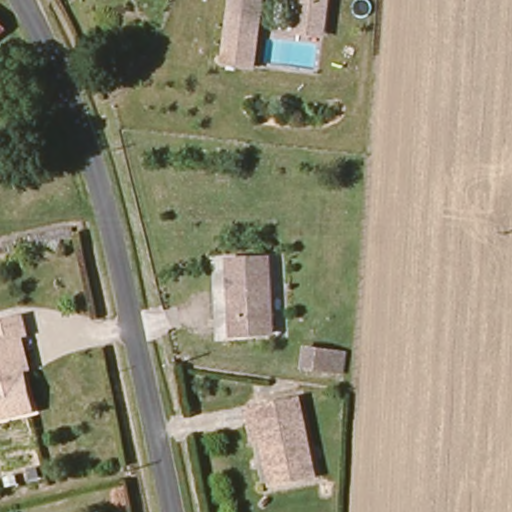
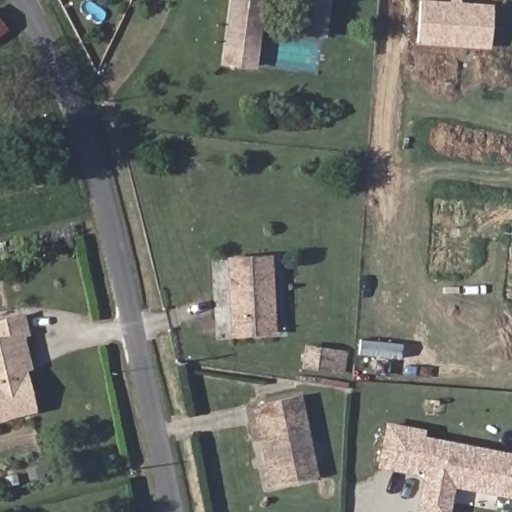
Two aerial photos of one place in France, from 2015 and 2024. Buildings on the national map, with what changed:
unchanged [(254,66),(224,64),(231,0),(261,0),(254,66)]
unchanged [(297,32),(300,2),(300,0),(327,0),(326,5),(322,35),(297,32)]
new [(416,43),(418,0),(433,0),(493,4),(490,48),(416,43)]
unchanged [(0,12),(1,11),(11,34),(0,42),(0,12)]
unchanged [(270,262),(273,338),(232,340),(229,265),(270,262)]
unchanged [(27,339),(22,340),(29,369),(22,371),(33,417),(0,424),(0,326),(23,321),(27,339)]
unchanged [(343,342),(343,363),(303,361),(305,340),(343,342)]
unchanged [(294,396),(314,481),(275,490),(255,406),(294,396)]
new [(416,466),(414,473),(380,466),(388,426),(422,433),(421,439),(457,446),(489,453),(512,457),(512,496),(452,485),(447,512),(419,512),(422,496),(425,480),(427,468),(416,466)]

